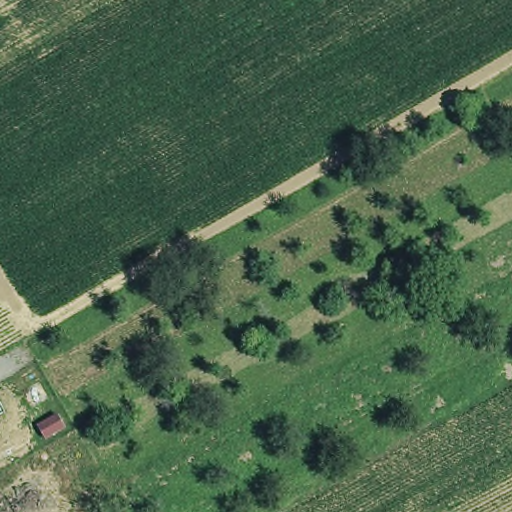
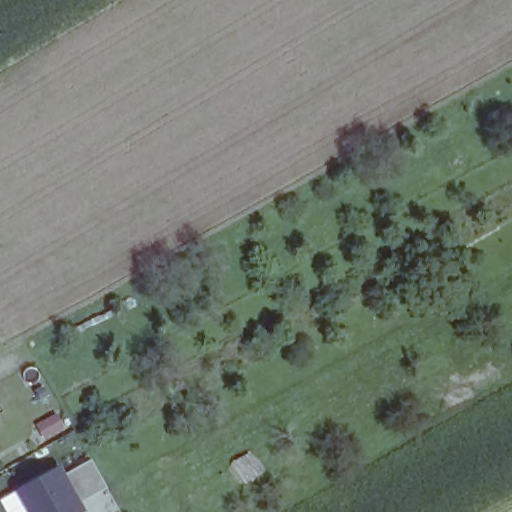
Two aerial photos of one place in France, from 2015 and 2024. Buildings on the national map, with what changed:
unchanged [(43,445),(35,429),(59,417),(67,433),(43,445)]
new [(60,463),(66,473),(91,459),(106,488),(81,501),(86,510),(83,512),(28,512),(14,489),(60,463)]

